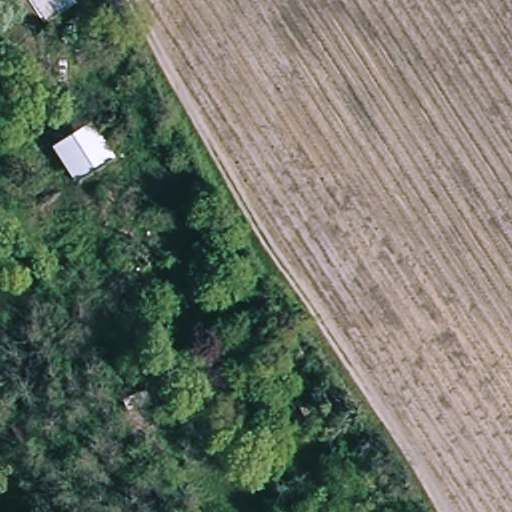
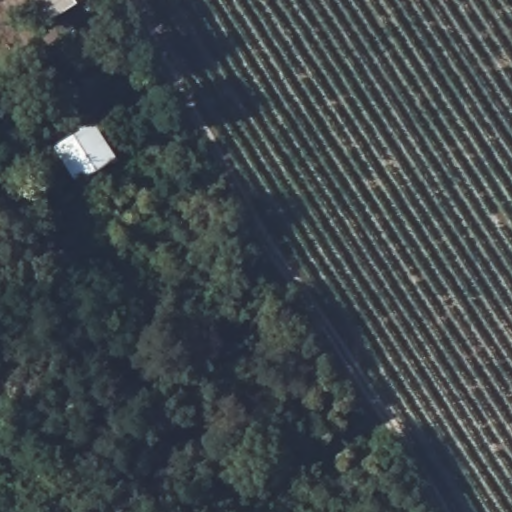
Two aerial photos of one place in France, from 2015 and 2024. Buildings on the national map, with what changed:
unchanged [(40,20),(27,0),(70,0),(40,20)]
unchanged [(78,181),(51,140),(86,117),(113,158),(78,181)]
unchanged [(29,413),(41,432),(30,439),(18,420),(29,413)]

